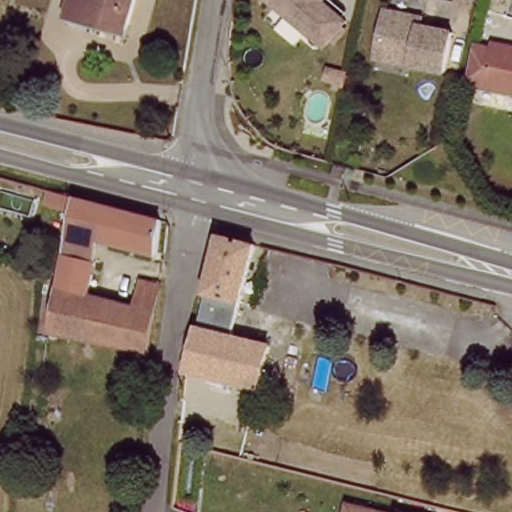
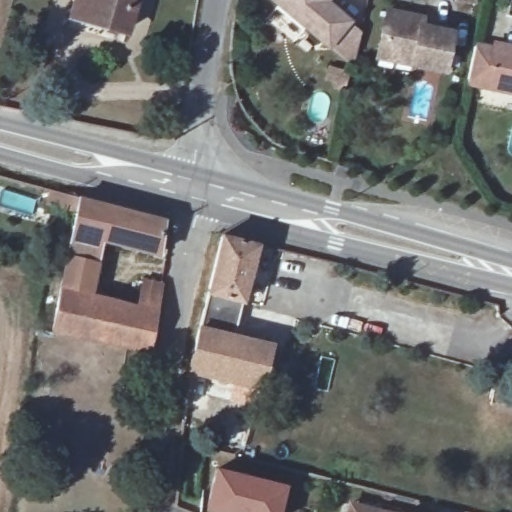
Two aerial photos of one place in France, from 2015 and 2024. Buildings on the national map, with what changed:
unchanged [(76,0),(137,0),(129,33),(71,18),(76,0)]
unchanged [(268,0),(334,0),(353,7),(341,37),(266,7),(268,0)]
unchanged [(382,54),(390,13),(459,27),(449,75),(415,67),(380,60),(382,54)]
unchanged [(467,82),(475,45),(495,49),(496,42),(512,46),(512,92),(467,82)]
unchanged [(161,217),(157,251),(100,240),(93,294),(62,288),(64,270),(72,211),(42,203),(46,187),(161,217)]
unchanged [(254,246),(235,332),(199,322),(220,237),(254,246)]
unchanged [(92,302),(130,308),(137,280),(157,286),(150,312),(141,350),(56,335),(62,288),(93,294),(92,302)]
unchanged [(345,295),(360,297),(357,318),(342,316),(345,295)]
unchanged [(199,322),(235,332),(232,342),(268,351),(258,393),(187,374),(196,335),(199,322)]
new [(288,482),(280,512),(205,512),(214,466),(288,482)]
unchanged [(343,512),(345,504),(365,508),(364,512),(343,512)]
unchanged [(364,512),(365,508),(379,512),(364,512)]

